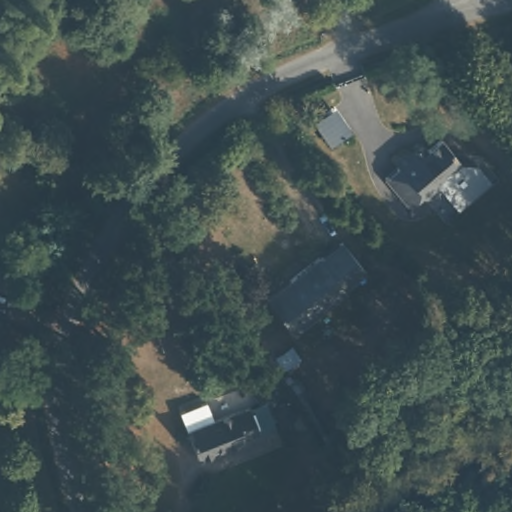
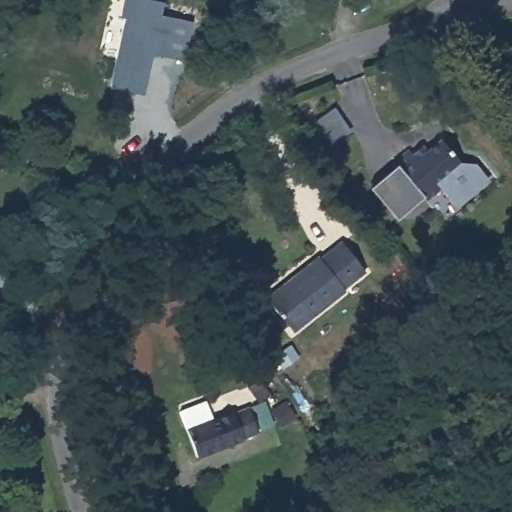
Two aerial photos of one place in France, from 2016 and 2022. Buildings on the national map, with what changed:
new [(120,16),(124,0),(153,0),(161,2),(159,14),(191,21),(182,59),(150,54),(141,93),(110,87),(125,18),(120,16)]
unchanged [(314,108),(329,131),(313,142),(297,119),(314,108)]
unchanged [(410,145),(412,150),(419,146),(422,149),(441,135),(459,159),(435,177),(440,184),(425,197),(418,192),(405,202),(383,174),(397,163),(394,159),(410,145)]
unchanged [(338,235),(341,238),(344,235),(365,263),(345,280),(347,284),(294,324),(267,290),(338,235)]
unchanged [(207,400),(213,418),(251,406),(259,435),(195,457),(180,409),(207,400)]

